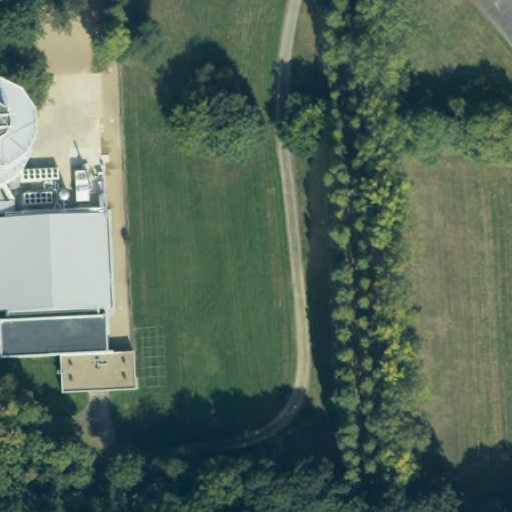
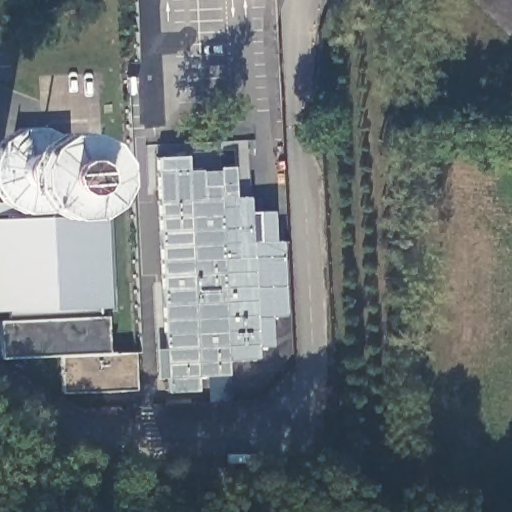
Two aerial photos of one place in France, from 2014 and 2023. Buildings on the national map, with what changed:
new [(11,132),(22,149),(25,172),(15,192),(0,202),(0,126),(11,132)]
new [(234,196),(247,195),(248,214),(272,213),(272,241),(283,239),(286,315),(268,316),(270,348),(257,348),(257,359),(230,360),(231,377),(197,378),(197,393),(167,394),(166,379),(154,379),(154,349),(164,348),(154,156),(186,154),(187,168),(230,166),(234,196)]
unchanged [(107,214),(111,306),(0,311),(0,218),(107,214)]
unchanged [(59,355),(2,357),(1,321),(7,321),(7,311),(98,307),(98,316),(106,316),(107,353),(59,355)]
unchanged [(134,389),(107,390),(61,393),(59,355),(132,352),(134,389)]

